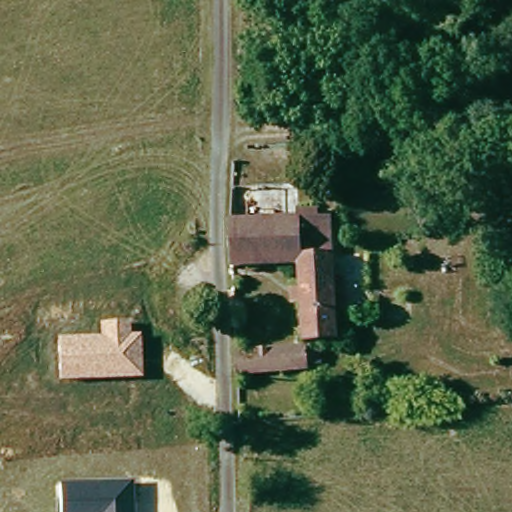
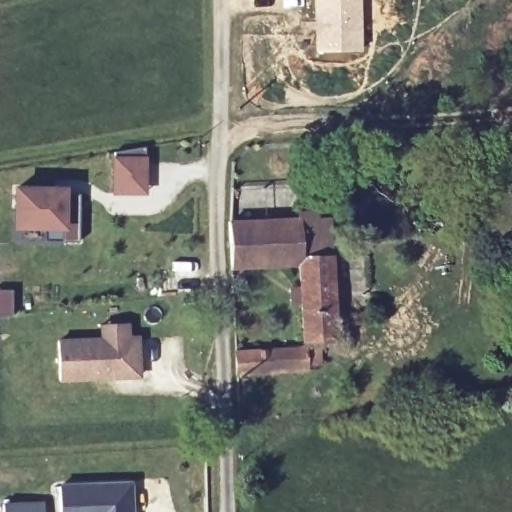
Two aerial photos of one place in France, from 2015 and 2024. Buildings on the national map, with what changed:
new [(314,54),(313,0),(361,0),(362,52),(314,54)]
new [(111,154),(148,155),(146,196),(110,195),(111,154)]
new [(67,187),(68,194),(78,194),(78,240),(45,240),(46,229),(12,229),(12,186),(67,187)]
unchanged [(295,286),(294,272),(232,278),(231,230),(293,225),(293,219),(311,217),(311,224),(300,225),(302,247),(326,246),(331,335),(298,340),(296,300),(288,301),(287,286),(295,286)]
new [(10,290),(10,308),(10,315),(0,316),(0,289),(10,290)]
unchanged [(58,339),(100,336),(100,322),(131,321),(131,333),(140,333),(142,378),(59,382),(58,339)]
unchanged [(231,356),(312,345),(312,357),(301,360),(300,372),(231,381),(231,356)]
unchanged [(135,482),(135,512),(60,512),(60,485),(135,482)]
new [(44,500),(44,512),(0,512),(0,502),(44,500)]

